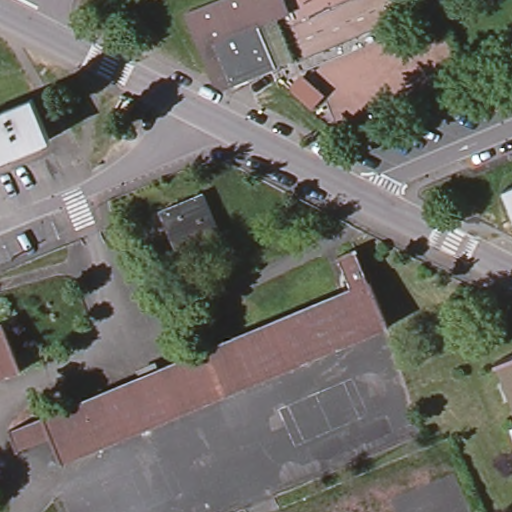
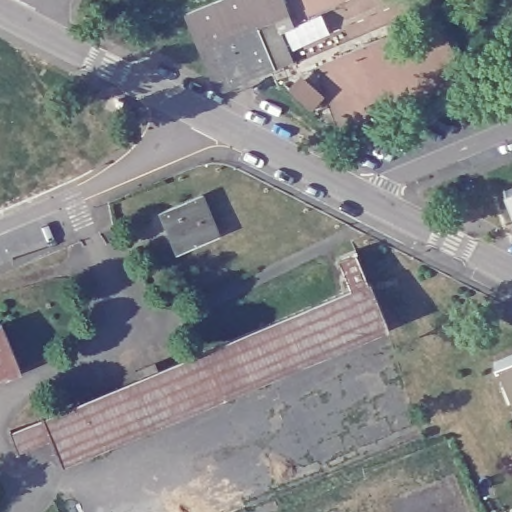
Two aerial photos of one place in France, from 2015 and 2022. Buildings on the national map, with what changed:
unchanged [(292,18),(279,23),(295,62),(217,95),(187,16),(224,0),(284,0),(292,18)]
demolished [(33,95),(50,137),(0,158),(0,109),(33,95)]
unchanged [(512,189),(512,214),(503,192),(512,189)]
unchanged [(201,192),(218,232),(177,249),(160,209),(201,192)]
unchanged [(337,260),(356,253),(387,327),(58,461),(48,437),(13,452),(6,433),(350,292),(337,260)]
unchanged [(7,324),(25,367),(0,377),(0,327),(7,324)]
unchanged [(496,360),(512,353),(512,399),(496,360)]

